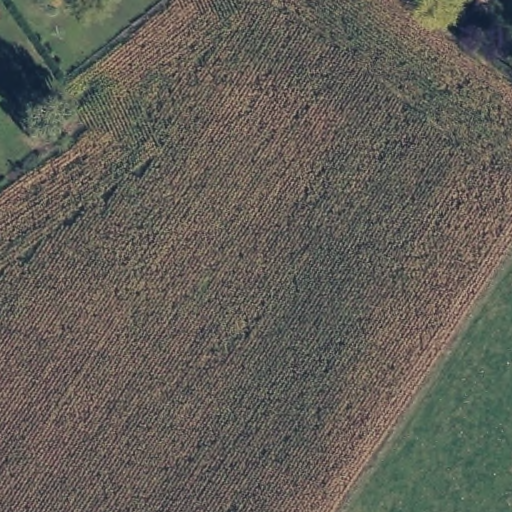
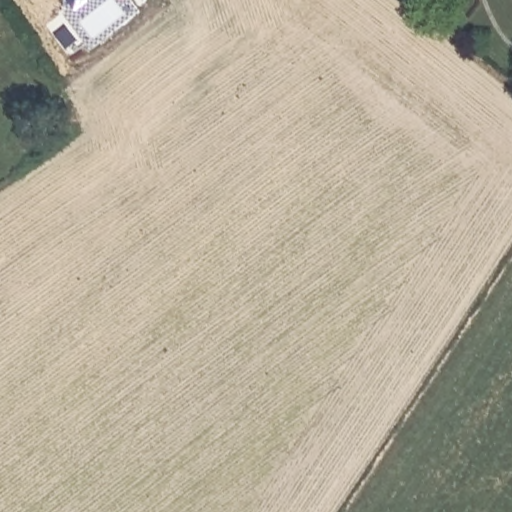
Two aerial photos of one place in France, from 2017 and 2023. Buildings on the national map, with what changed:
unchanged [(0,25),(0,15),(4,22),(0,25)]

